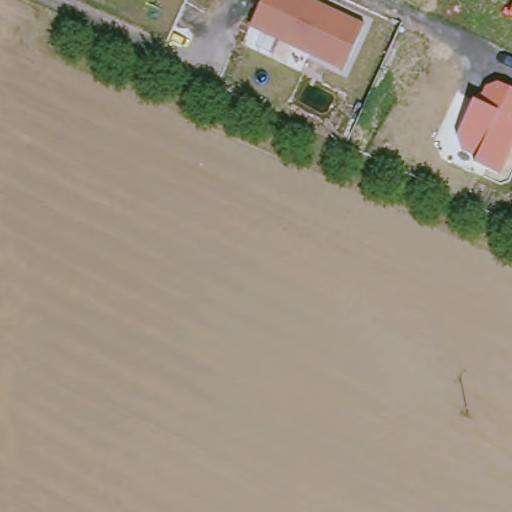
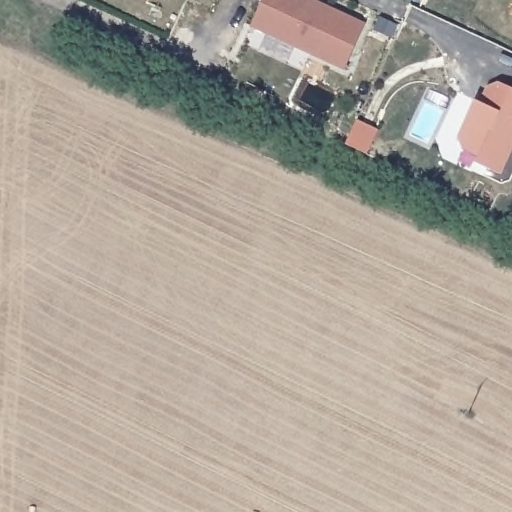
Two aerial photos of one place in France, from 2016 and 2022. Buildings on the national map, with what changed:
unchanged [(250,25),(261,0),(317,0),(365,21),(343,68),(250,25)]
unchanged [(512,7),(512,14),(510,12),(512,7)]
unchanged [(473,162),(475,158),(458,150),(456,136),(475,97),(479,99),(485,86),(498,82),(511,89),(512,86),(512,149),(500,175),(473,162)]

